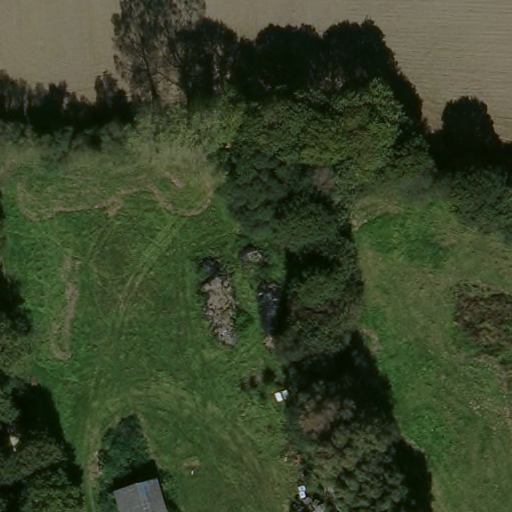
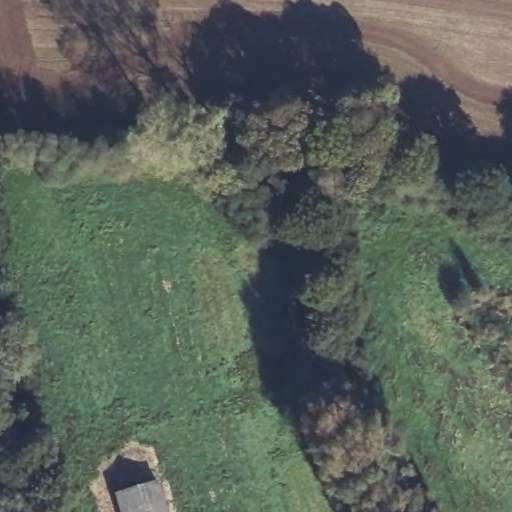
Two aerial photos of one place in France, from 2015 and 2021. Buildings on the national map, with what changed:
unchanged [(166,512),(116,512),(111,495),(157,482),(166,512)]

